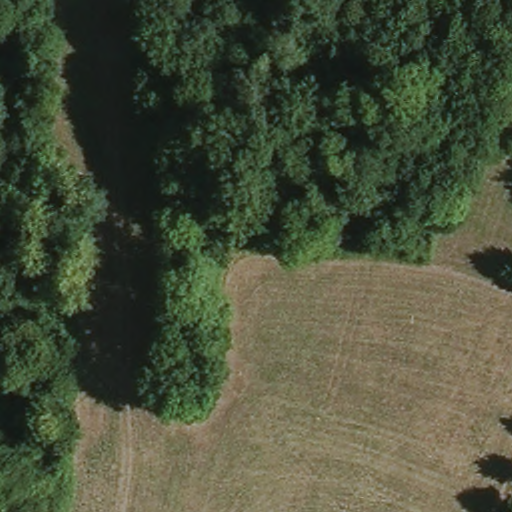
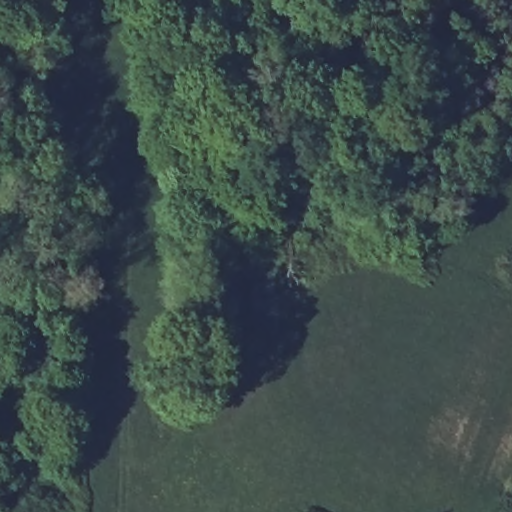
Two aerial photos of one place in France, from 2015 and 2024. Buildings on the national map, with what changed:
[]

